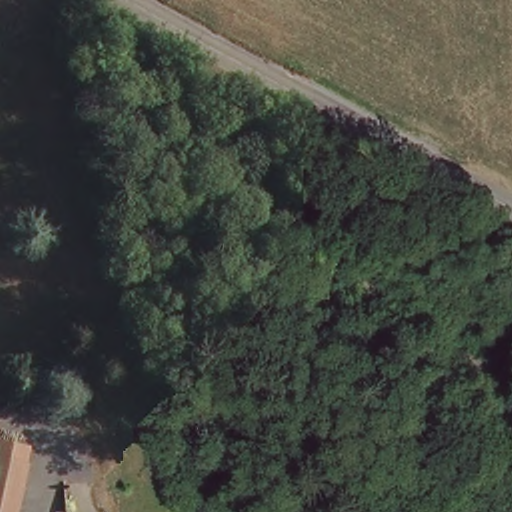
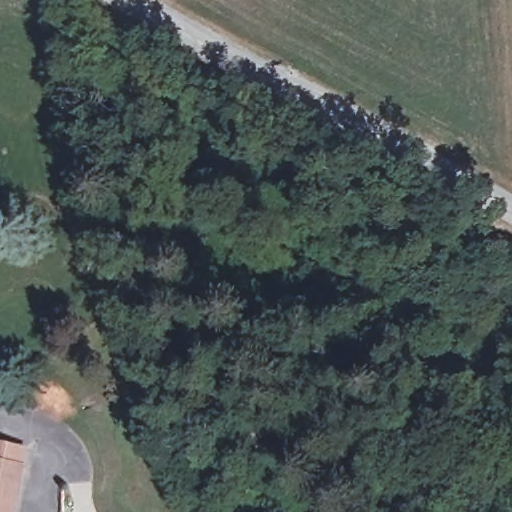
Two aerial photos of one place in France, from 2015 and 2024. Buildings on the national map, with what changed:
unchanged [(15,512),(0,512),(0,437),(26,442),(15,512)]

